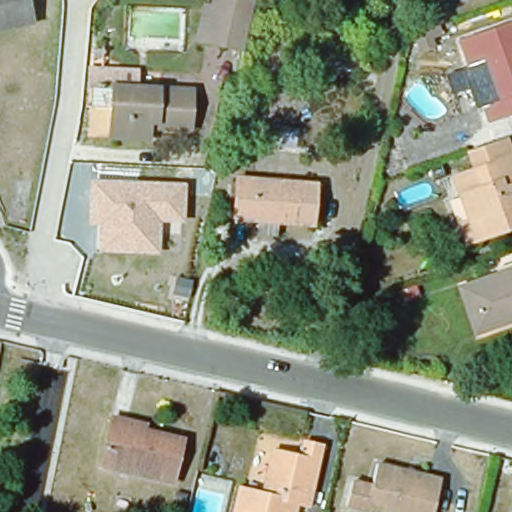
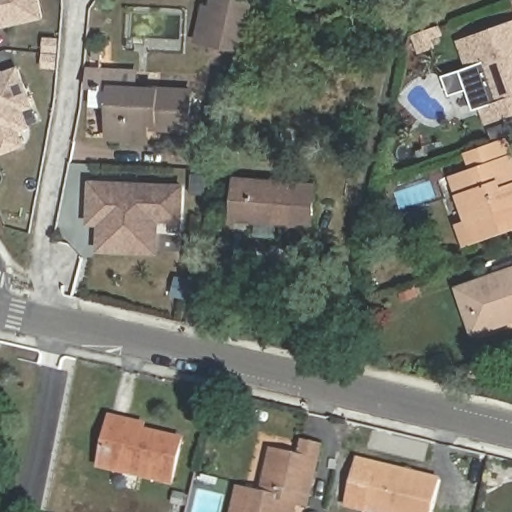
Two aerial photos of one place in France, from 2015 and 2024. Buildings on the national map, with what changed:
unchanged [(31,25),(0,32),(0,0),(26,0),(31,25)]
unchanged [(203,4),(211,6),(213,0),(255,0),(252,8),(243,50),(204,41),(195,38),(203,4)]
unchanged [(480,109),(495,104),(482,65),(466,71),(458,44),(511,24),(512,24),(512,118),(486,127),(480,109)]
unchanged [(442,39),(431,43),(434,50),(418,57),(412,38),(415,36),(438,28),(442,39)]
new [(19,65),(35,107),(25,110),(32,128),(21,131),(27,146),(0,155),(0,69),(1,71),(19,65)]
unchanged [(107,128),(108,110),(91,109),(91,92),(85,92),(86,71),(109,72),(139,73),(137,92),(192,94),(189,133),(151,130),(149,145),(106,143),(107,128)]
unchanged [(512,229),(462,246),(456,228),(466,224),(452,180),(512,158),(512,229)]
unchanged [(186,222),(162,222),(161,255),(96,254),(96,227),(88,226),(89,179),(187,182),(186,222)]
unchanged [(314,186),(311,228),(230,222),(234,181),(314,186)]
unchanged [(470,283),(512,268),(512,319),(511,319),(477,331),(461,286),(470,283)]
unchanged [(143,430),(142,434),(179,443),(169,487),(97,469),(109,421),(143,430)]
unchanged [(256,492),(267,449),(293,455),(297,440),(316,445),(301,503),(290,500),(287,512),(227,512),(233,487),(256,492)]
unchanged [(439,481),(431,512),(364,512),(375,465),(439,481)]

